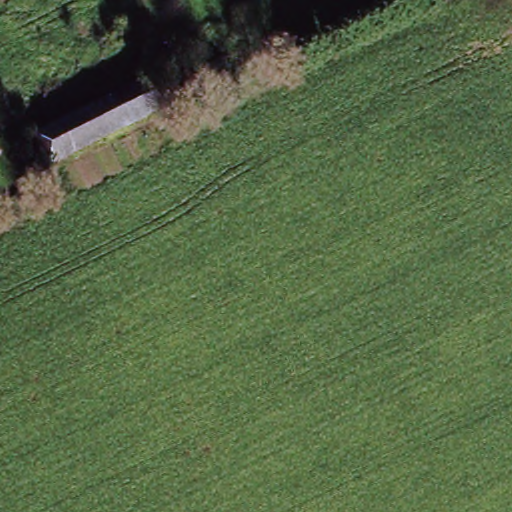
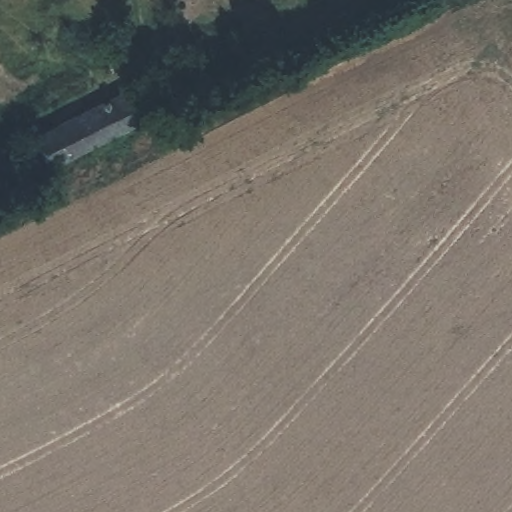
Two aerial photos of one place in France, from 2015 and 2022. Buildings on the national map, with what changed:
unchanged [(25,139),(168,67),(187,100),(43,173),(25,139)]

